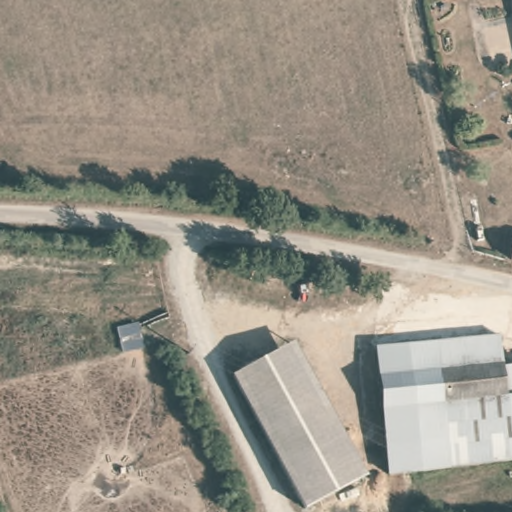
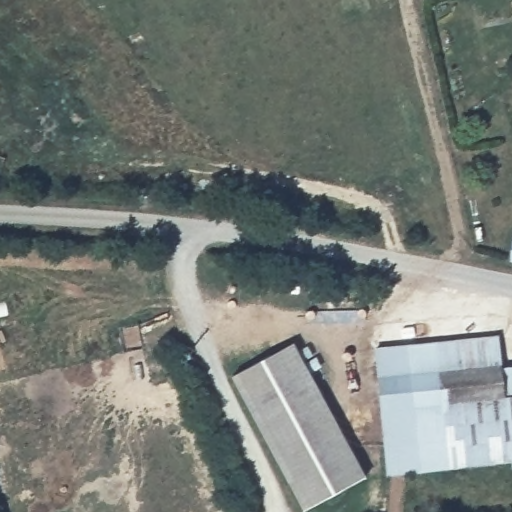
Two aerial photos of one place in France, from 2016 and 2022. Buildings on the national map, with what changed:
unchanged [(507,257),(512,238),(512,259),(507,257)]
unchanged [(504,334),(508,364),(512,364),(512,401),(445,406),(438,341),(504,334)]
unchanged [(503,432),(506,460),(391,473),(378,347),(438,341),(445,406),(512,401),(512,432),(503,432)]
unchanged [(296,511),(226,378),(288,346),(310,389),(356,481),(323,497),(296,511)]

